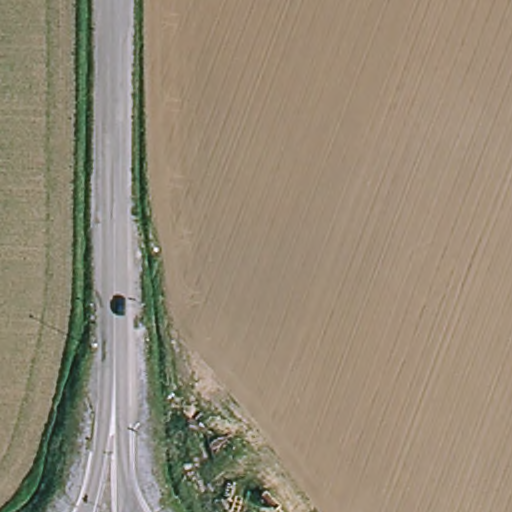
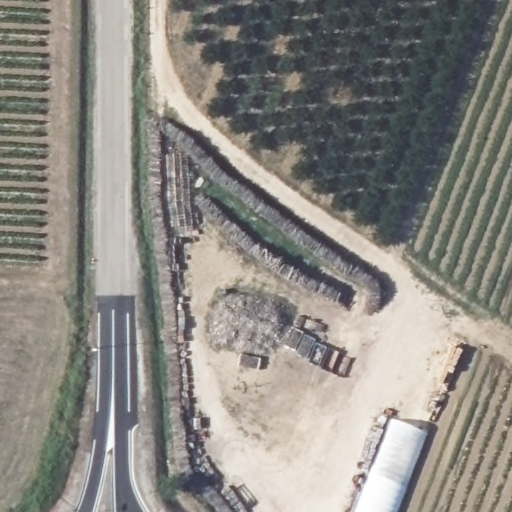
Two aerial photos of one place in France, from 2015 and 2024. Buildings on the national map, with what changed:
new [(392,419),(428,433),(396,512),(356,512),(392,419)]

